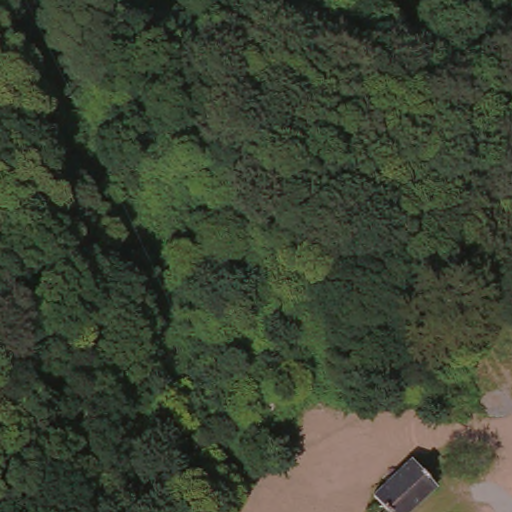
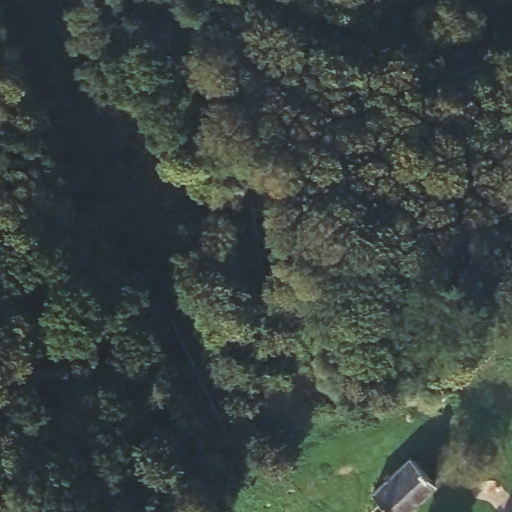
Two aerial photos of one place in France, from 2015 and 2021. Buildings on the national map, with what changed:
unchanged [(408,512),(383,512),(373,501),(412,467),(433,491),(408,512)]

